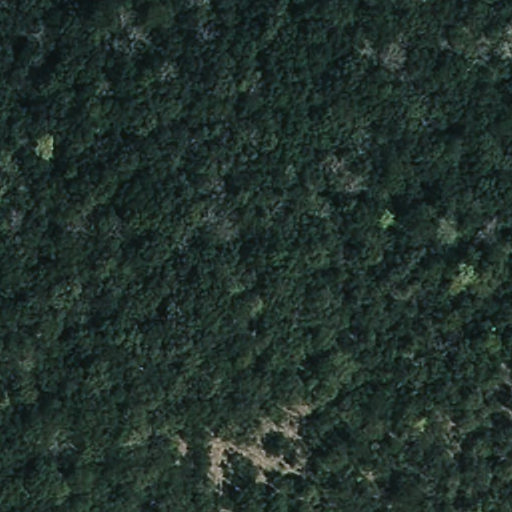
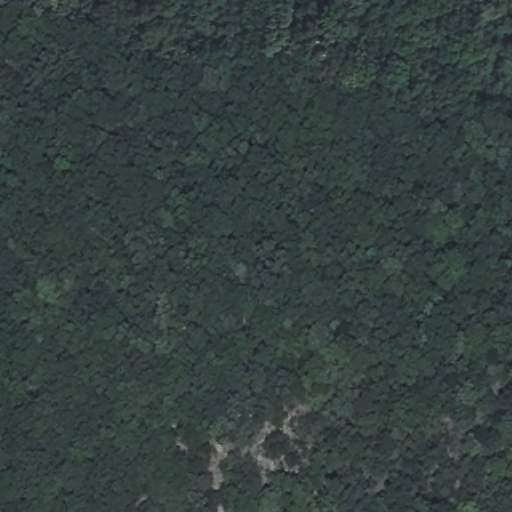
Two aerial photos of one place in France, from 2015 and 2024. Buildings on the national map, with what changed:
[]

